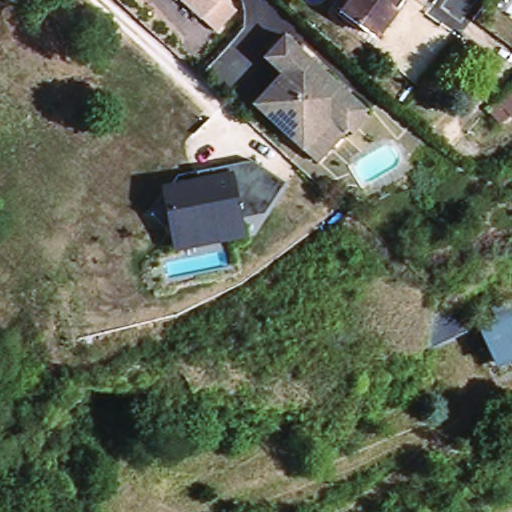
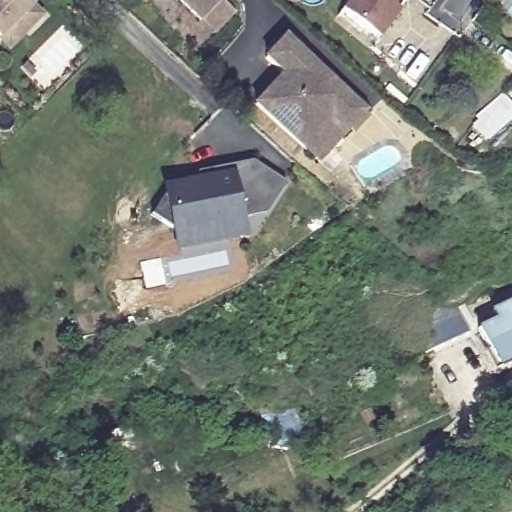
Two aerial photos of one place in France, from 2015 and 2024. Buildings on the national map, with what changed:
new [(34,4),(44,15),(9,51),(0,42),(0,0),(29,0),(34,4)]
unchanged [(238,10),(217,31),(182,0),(227,0),(238,10)]
unchanged [(349,0),(395,0),(390,6),(395,11),(375,37),(340,11),(349,0)]
unchanged [(286,74),(270,57),(290,38),(306,54),(301,59),(309,68),(314,62),(365,116),(315,164),(256,103),(286,74)]
unchanged [(512,82),(512,110),(495,123),(481,107),(512,82)]
unchanged [(199,178),(197,170),(254,159),(287,181),(266,214),(245,218),(249,236),(175,252),(170,224),(152,215),(165,196),(164,186),(199,178)]
unchanged [(512,308),(512,364),(497,370),(480,334),(498,326),(493,316),(512,308)]
unchanged [(457,309),(470,336),(421,357),(410,329),(457,309)]

